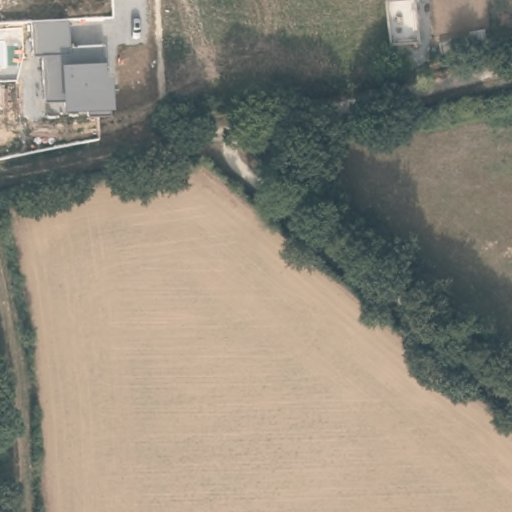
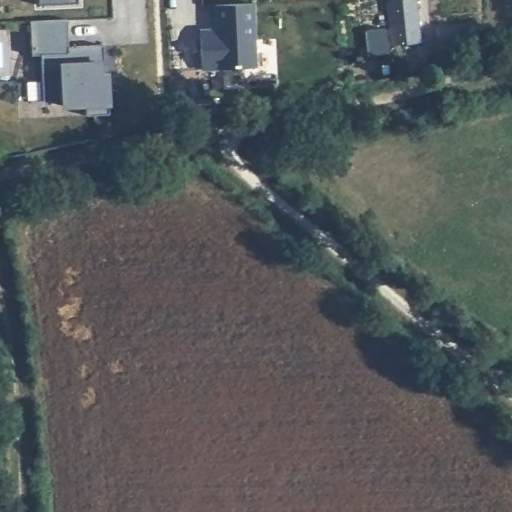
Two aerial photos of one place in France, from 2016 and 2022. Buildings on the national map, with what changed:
unchanged [(39,4),(38,0),(76,0),(76,3),(39,4)]
unchanged [(391,41),(386,0),(415,0),(420,39),(391,41)]
new [(200,28),(214,27),(212,5),(255,2),(257,68),(202,71),(200,28)]
unchanged [(69,46),(104,45),(107,113),(85,113),(87,105),(61,106),(61,99),(44,99),(41,51),(31,53),(32,20),(66,18),(69,46)]

